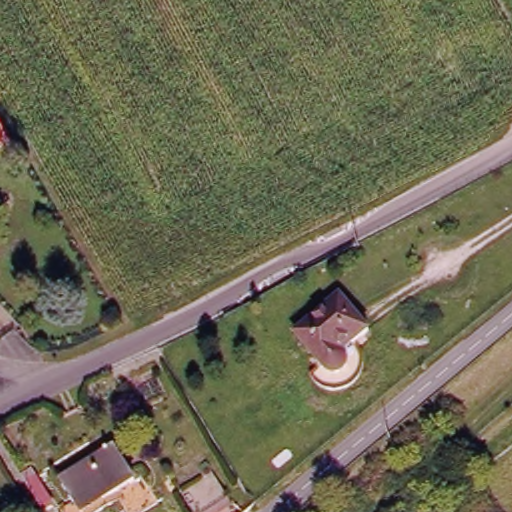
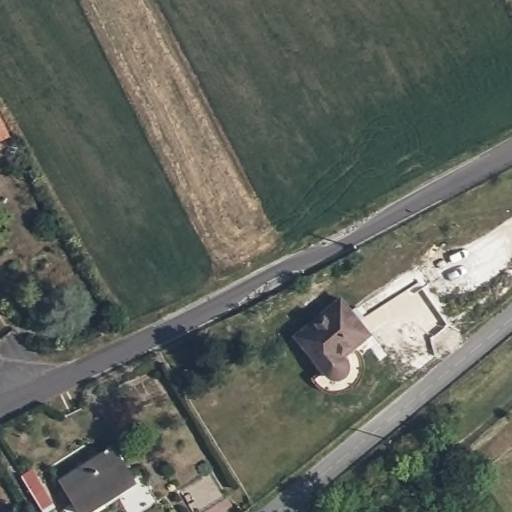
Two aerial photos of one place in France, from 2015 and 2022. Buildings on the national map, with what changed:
unchanged [(367,333),(345,351),(350,356),(352,359),(353,364),(352,368),(349,372),(346,374),(342,377),(338,377),(333,377),(330,375),(327,373),(293,334),(337,298),(367,333)]
unchanged [(115,446),(134,477),(105,495),(109,502),(94,512),(65,512),(61,506),(75,497),(63,479),(115,446)]
unchanged [(213,474),(232,503),(219,512),(193,512),(182,494),(213,474)]
unchanged [(13,512),(3,512),(11,508),(13,512)]

